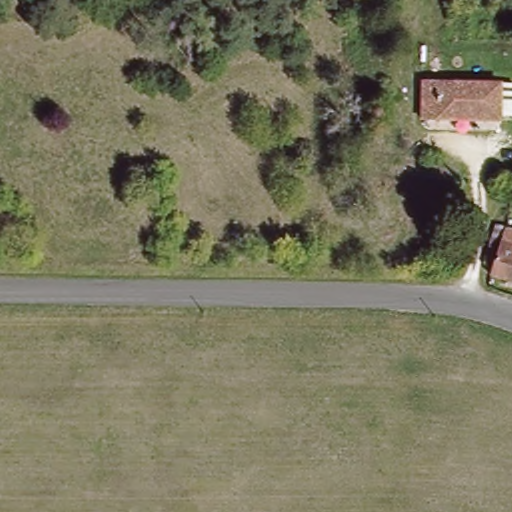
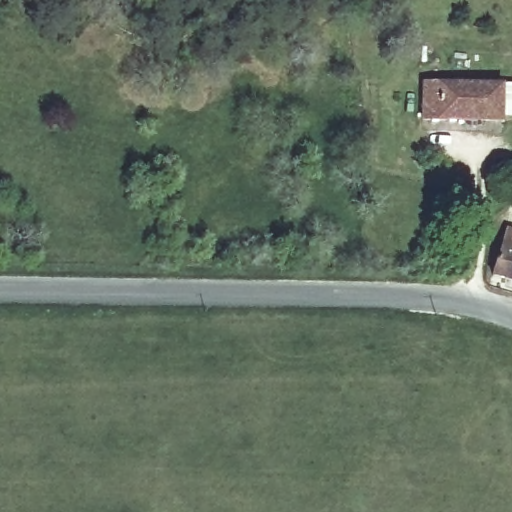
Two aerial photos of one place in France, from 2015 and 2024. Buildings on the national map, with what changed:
unchanged [(416,124),(418,85),(505,88),(503,122),(489,122),(488,127),(416,124)]
unchanged [(497,239),(512,244),(512,277),(487,268),(497,239)]

